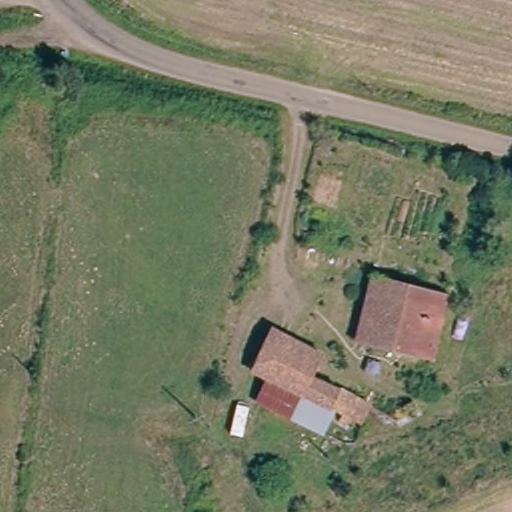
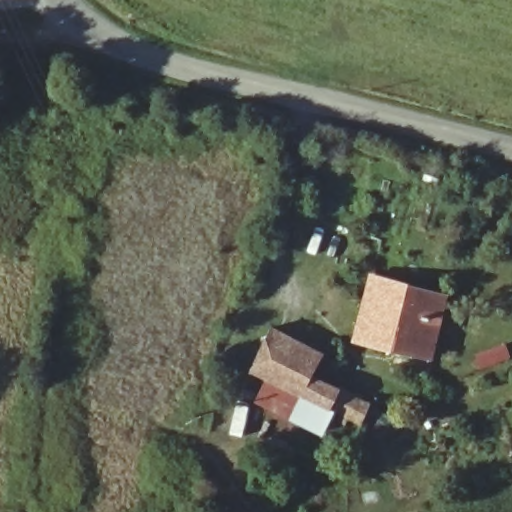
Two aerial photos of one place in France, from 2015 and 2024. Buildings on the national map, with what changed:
unchanged [(429,359),(357,340),(372,276),(446,294),(429,359)]
unchanged [(258,398),(267,378),(250,370),(270,327),(319,352),(310,372),(367,401),(358,421),(349,418),(347,423),(339,419),(341,414),(333,409),(322,431),(258,398)]

